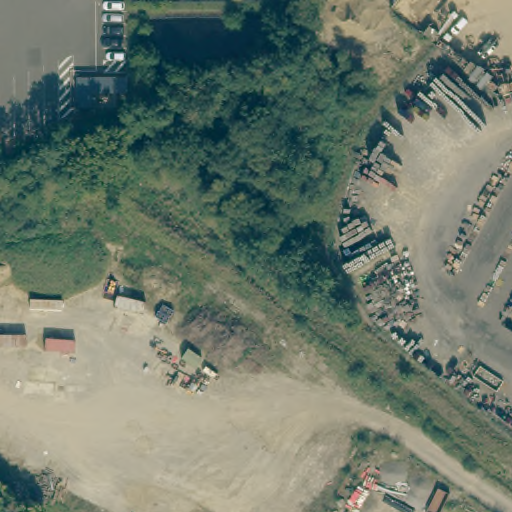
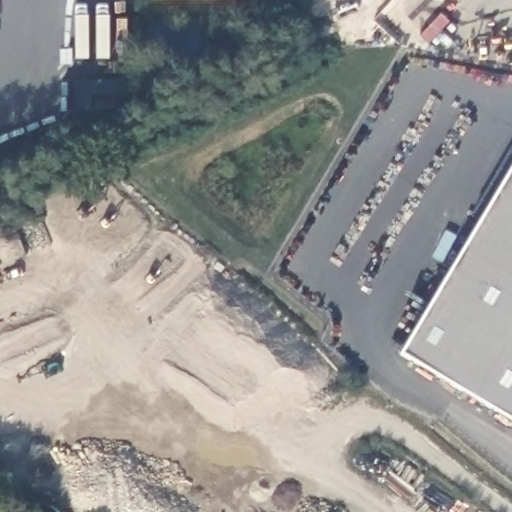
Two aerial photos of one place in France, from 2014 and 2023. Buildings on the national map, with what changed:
new [(512,167),(512,418),(400,352),(512,167)]

